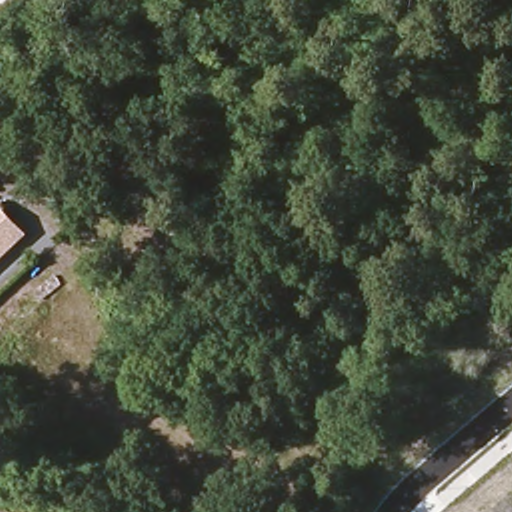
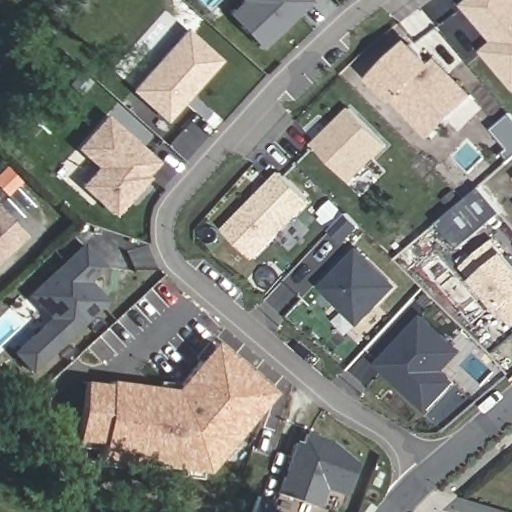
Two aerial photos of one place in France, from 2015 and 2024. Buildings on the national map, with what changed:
new [(307,0),(260,45),(228,12),(241,0),(307,0)]
new [(494,43),(462,7),(471,0),(512,0),(512,87),(482,53),(494,43)]
new [(185,30),(218,59),(166,118),(134,90),(185,30)]
new [(443,65),(473,95),(428,139),(371,80),(410,43),(437,69),(443,65)]
new [(347,110),(384,145),(348,181),(311,146),(347,110)]
new [(512,160),(510,161),(502,153),(507,149),(491,130),(510,114),(512,116),(512,160)]
new [(105,115),(155,159),(144,172),(146,175),(130,193),(126,190),(122,194),(126,197),(114,211),(82,184),(98,165),(77,146),(105,115)]
new [(278,173),(307,200),(254,260),(224,232),(278,173)]
unchanged [(27,235),(0,261),(0,205),(27,235)]
new [(512,266),(512,324),(463,268),(492,242),(512,266)]
new [(11,353),(49,318),(27,295),(85,245),(106,267),(90,282),(109,301),(31,374),(11,353)]
new [(355,250),(393,286),(358,324),(320,289),(355,250)]
new [(403,332),(421,313),(450,340),(460,348),(441,368),(453,380),(427,408),(376,362),(397,340),(403,332)]
new [(212,343),(271,393),(206,473),(98,458),(100,445),(75,442),(83,381),(170,392),(212,343)]
new [(293,441),(300,443),(303,431),(326,439),(353,461),(343,491),(322,484),(315,505),(276,491),(293,441)]
new [(257,496),(275,502),(271,512),(251,512),(257,496)]

